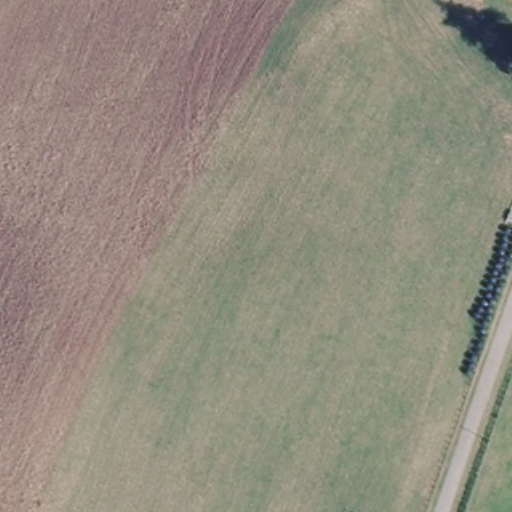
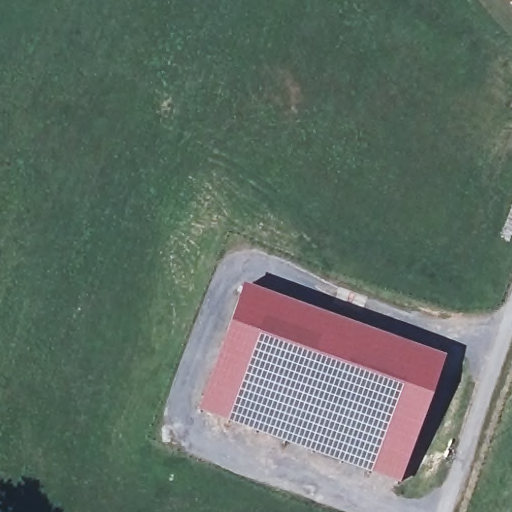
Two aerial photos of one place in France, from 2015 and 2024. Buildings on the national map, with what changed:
new [(444,359),(401,486),(195,413),(240,286),(444,359)]

